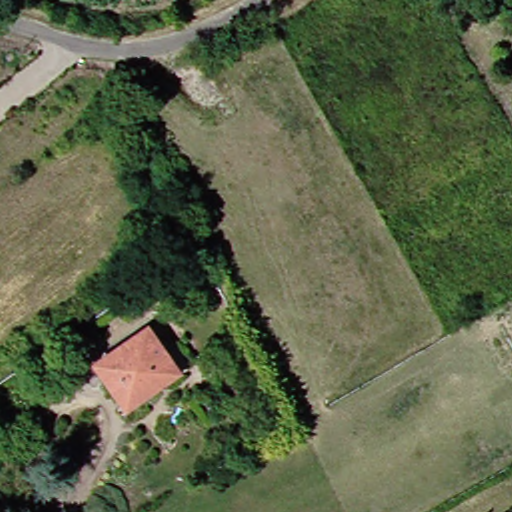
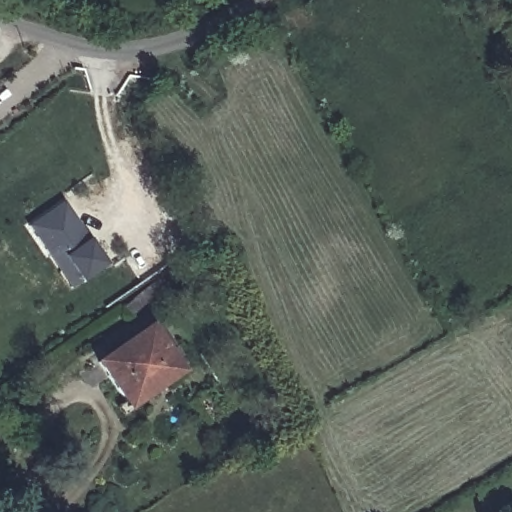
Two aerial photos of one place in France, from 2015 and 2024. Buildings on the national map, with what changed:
new [(58,201),(101,262),(66,287),(23,225),(58,201)]
demolished [(169,291),(136,316),(128,306),(162,281),(169,291)]
unchanged [(95,359),(148,325),(168,356),(181,348),(189,359),(177,367),(179,370),(162,381),(126,404),(121,397),(95,359)]

